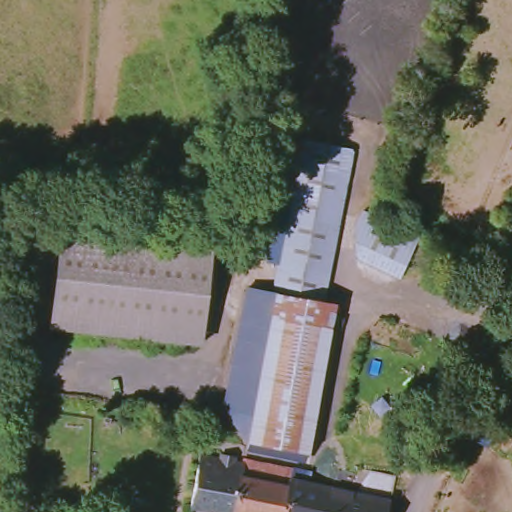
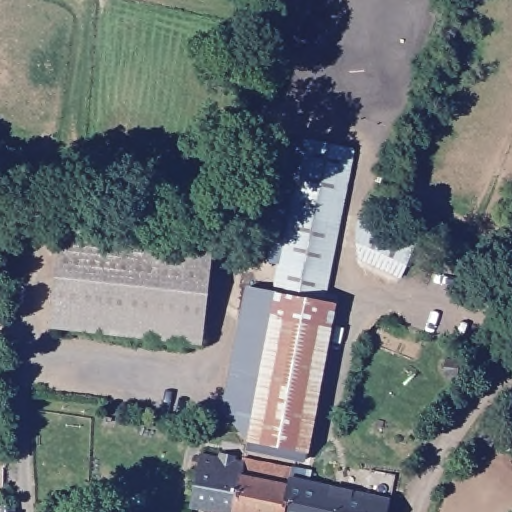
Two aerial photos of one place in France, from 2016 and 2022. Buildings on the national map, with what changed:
unchanged [(305,140),(352,146),(323,300),(340,304),(309,458),(247,450),(249,442),(277,293),(282,263),(268,261),(290,145),(305,140)]
unchanged [(419,233),(407,266),(402,279),(358,260),(357,245),(357,230),(362,207),(419,233)]
unchanged [(210,234),(202,333),(52,321),(60,222),(210,234)]
unchanged [(249,442),(225,410),(248,287),(277,293),(249,442)]
unchanged [(194,510),(197,470),(200,457),(220,460),(220,456),(237,459),(236,462),(243,463),(244,460),(293,467),(293,476),(310,480),(316,457),(338,462),(332,486),(352,491),(361,465),(393,473),(387,500),(384,512),(206,512),(194,510)]
unchanged [(10,505),(10,512),(0,512),(0,505),(5,505),(10,505)]

